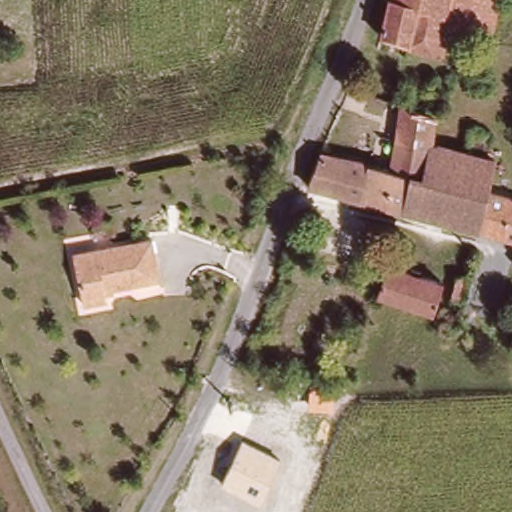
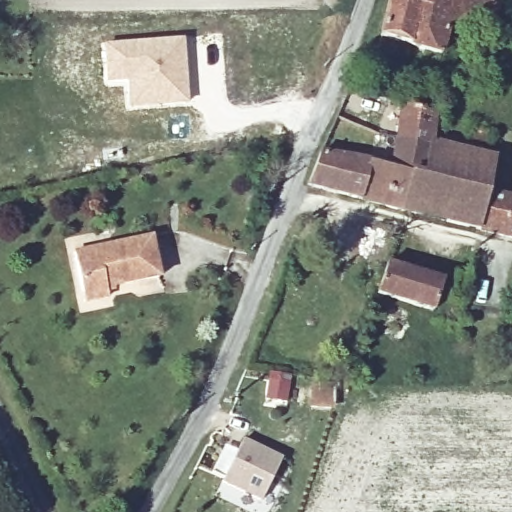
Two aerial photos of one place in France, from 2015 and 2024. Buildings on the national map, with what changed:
unchanged [(418,16),(409,47),(381,41),(391,0),(448,0),(442,22),(418,16)]
unchanged [(442,22),(448,0),(499,0),(490,35),(451,26),(444,55),(409,47),(418,16),(442,22)]
new [(184,38),(188,105),(127,110),(125,85),(103,86),(101,43),(184,38)]
unchanged [(434,154),(400,148),(407,114),(442,123),(435,150),(434,154)]
unchanged [(416,181),(410,180),(409,168),(396,166),(400,148),(434,154),(435,150),(502,167),(494,197),(483,236),(407,218),(416,181)]
unchanged [(396,166),(409,168),(410,180),(416,181),(407,218),(313,196),(329,159),(395,176),(396,166)]
unchanged [(494,197),(512,202),(512,244),(483,236),(494,197)]
unchanged [(74,249),(151,234),(158,273),(104,283),(106,294),(83,299),(81,288),(74,249)]
unchanged [(444,289),(435,318),(382,302),(391,273),(444,289)]
unchanged [(462,283),(458,309),(444,307),(447,281),(462,283)]
unchanged [(280,457),(260,502),(221,482),(241,438),(280,457)]

